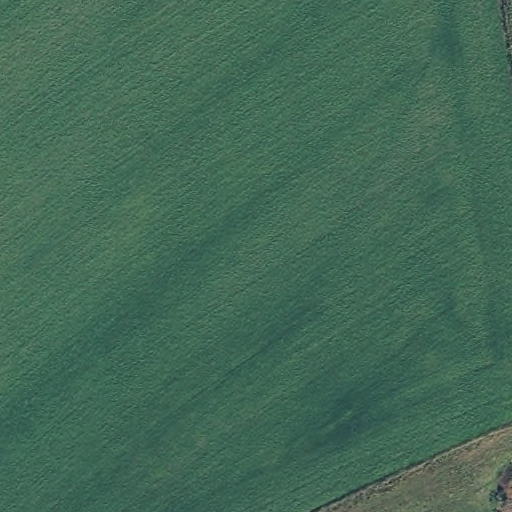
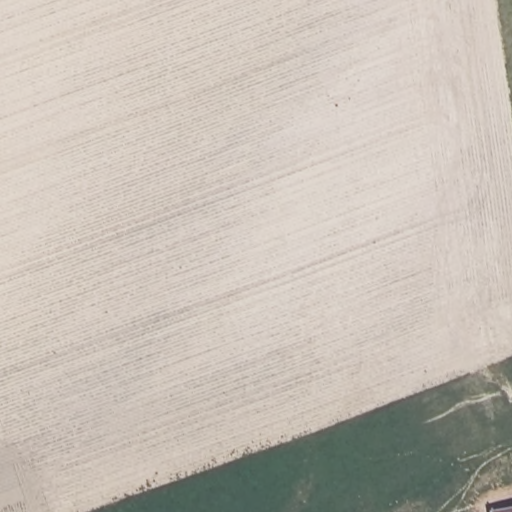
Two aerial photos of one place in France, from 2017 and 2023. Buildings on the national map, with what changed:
[]

